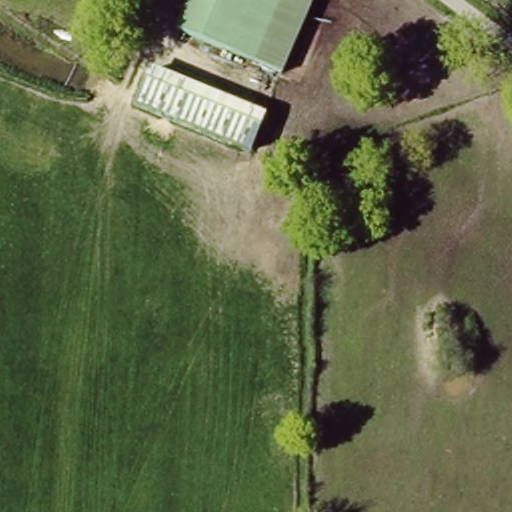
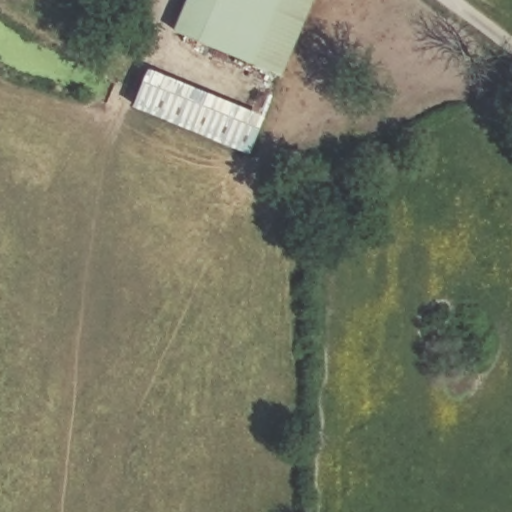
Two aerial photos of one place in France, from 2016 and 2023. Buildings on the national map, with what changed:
unchanged [(321,0),(293,79),(182,35),(196,0),(321,0)]
unchanged [(267,115),(251,154),(133,106),(149,68),(267,115)]

